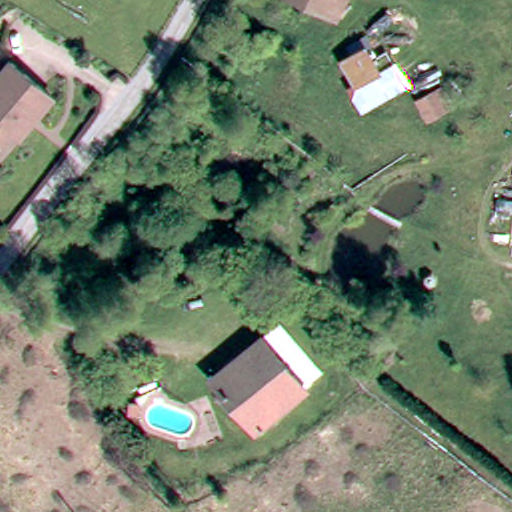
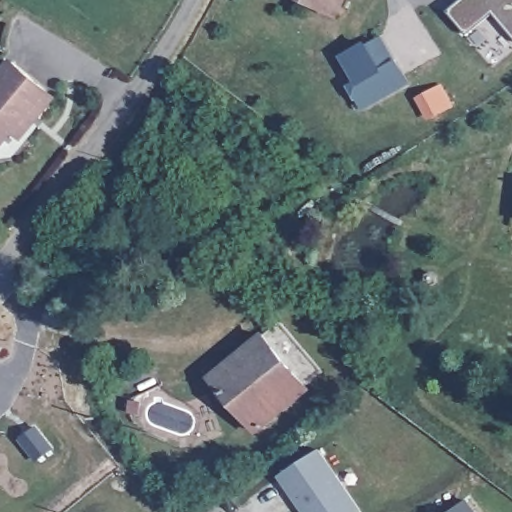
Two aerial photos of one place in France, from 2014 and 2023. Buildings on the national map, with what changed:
unchanged [(312,0),(345,0),(338,14),(312,0)]
new [(512,0),(512,36),(495,17),(470,40),(450,18),(470,0),(512,0)]
unchanged [(352,84),(353,83),(358,80),(343,57),(365,42),(380,66),(395,57),(409,79),(370,105),(367,107),(352,84)]
unchanged [(4,135),(0,131),(0,72),(20,51),(60,87),(44,106),(25,127),(18,120),(4,135)]
unchanged [(432,97),(440,94),(450,111),(443,116),(428,123),(425,118),(418,105),(432,97)]
unchanged [(317,382),(305,393),(260,345),(274,332),(317,382)]
unchanged [(257,341),(260,345),(305,393),(252,440),(220,406),(216,409),(208,401),(212,397),(204,387),(257,341)]
new [(290,494),(330,468),(358,512),(301,512),(296,504),(290,494)]
new [(468,499),(478,512),(451,512),(468,499)]

